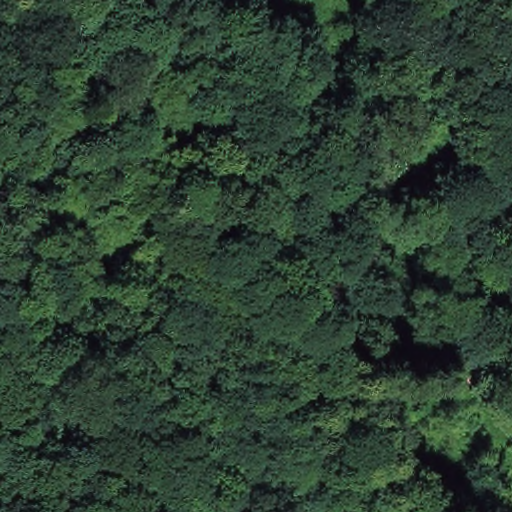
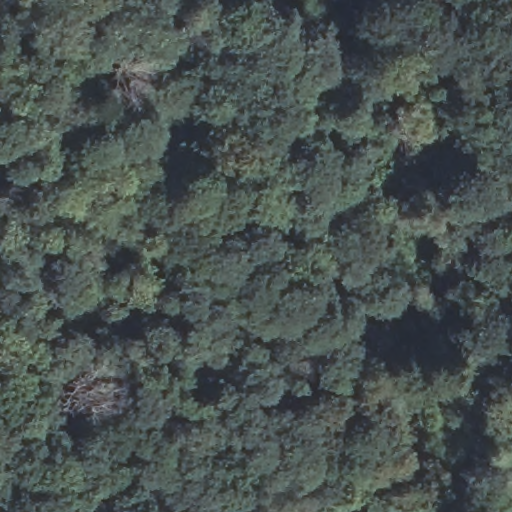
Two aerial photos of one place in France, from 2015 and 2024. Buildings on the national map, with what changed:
unchanged [(512,293),(512,312),(510,312),(502,296),(512,293)]
unchanged [(512,368),(506,377),(469,355),(483,330),(512,350),(512,368)]

